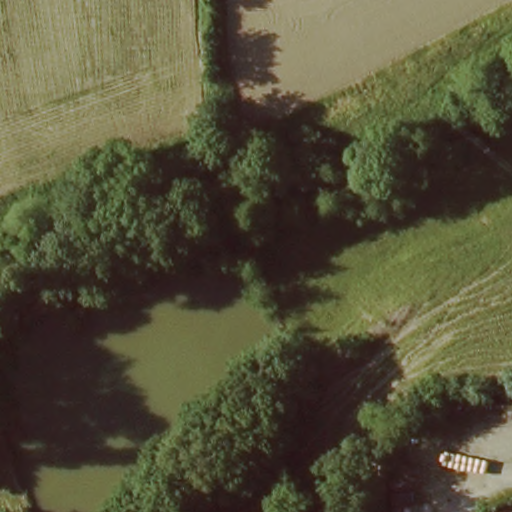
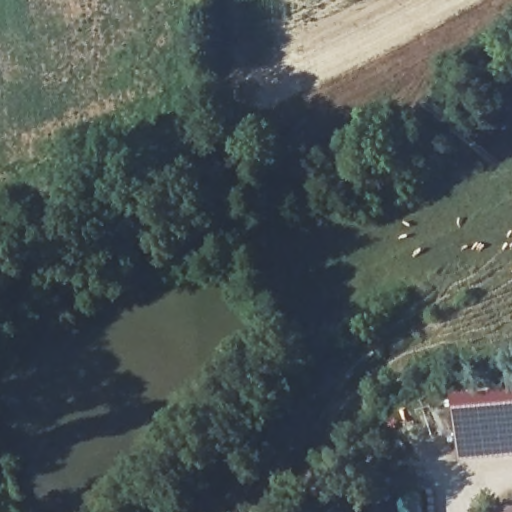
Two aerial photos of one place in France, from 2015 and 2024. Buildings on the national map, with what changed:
new [(512,391),(512,463),(460,467),(450,393),(470,391),(512,391)]

